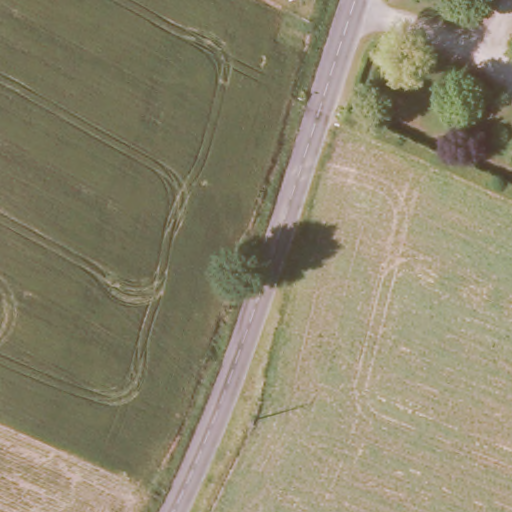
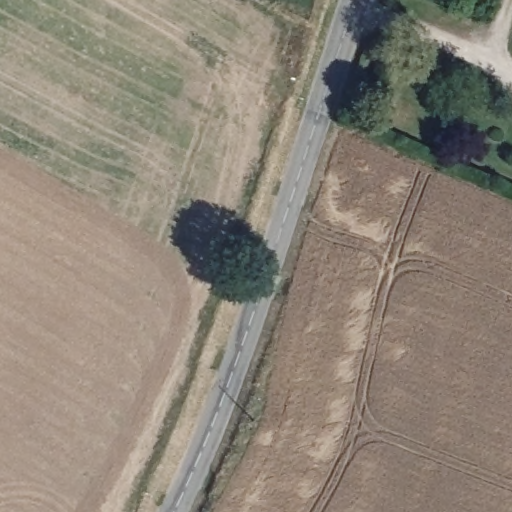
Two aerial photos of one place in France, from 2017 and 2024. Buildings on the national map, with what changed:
[]

